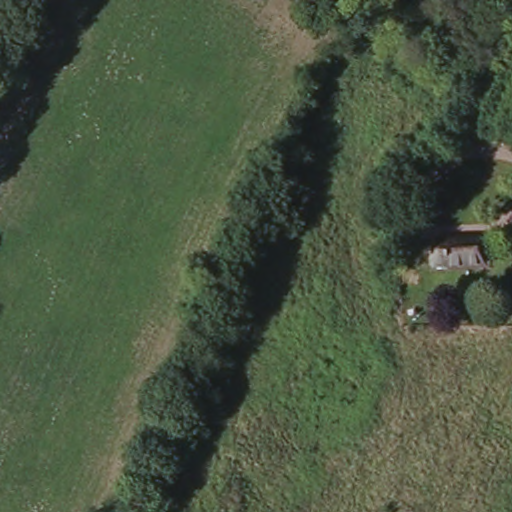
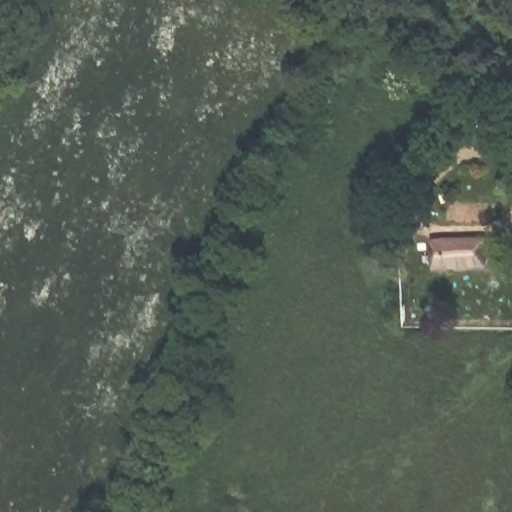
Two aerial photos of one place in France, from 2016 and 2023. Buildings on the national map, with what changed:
unchanged [(476,236),(480,263),(431,270),(428,242),(476,236)]

